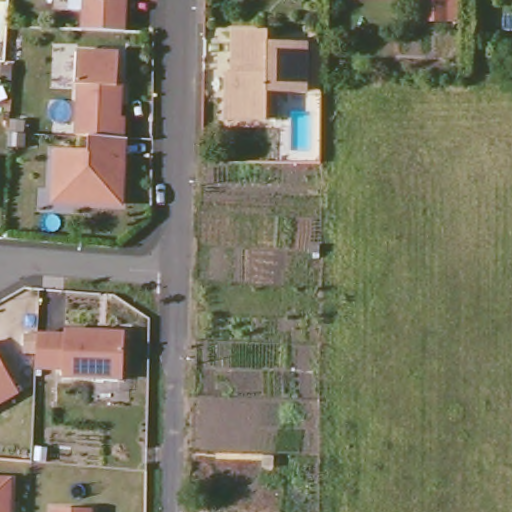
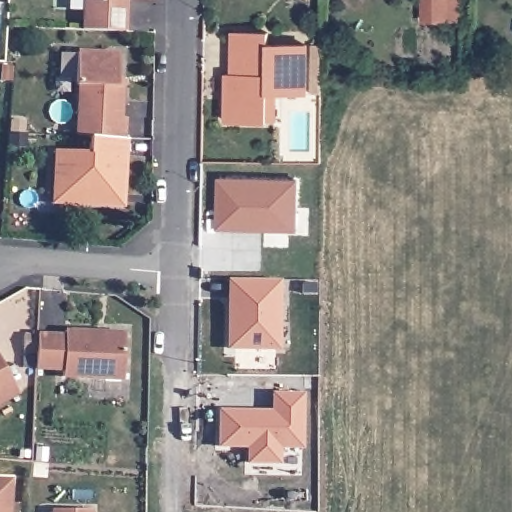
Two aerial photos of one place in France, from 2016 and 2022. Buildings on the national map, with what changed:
unchanged [(121,33),(77,30),(79,0),(122,0),(121,33)]
unchanged [(424,0),(445,0),(446,22),(442,22),(424,22),(424,0)]
unchanged [(219,97),(219,74),(224,74),(225,33),(256,34),(255,46),(296,48),(296,93),(267,92),(266,121),(257,121),(225,120),(219,120),(219,97)]
unchanged [(305,104),(305,52),(311,52),(311,80),(311,104),(305,104)]
unchanged [(117,144),(72,141),(71,141),(74,90),(70,89),(72,55),(93,57),(97,62),(114,63),(112,91),(117,92),(115,123),(119,123),(117,144)]
new [(10,81),(0,81),(0,66),(11,66),(10,81)]
unchanged [(60,194),(63,141),(71,141),(72,141),(117,144),(128,145),(124,210),(84,207),(59,206),(60,194)]
new [(220,179),(297,179),(297,229),(219,228),(220,179)]
new [(229,279),(280,280),(279,350),(232,349),(233,299),(229,299),(229,279)]
new [(302,284),(316,284),(316,294),(302,294),(302,284)]
unchanged [(35,367),(36,351),(37,334),(64,335),(64,330),(96,330),(96,334),(122,334),(117,377),(62,375),(35,374),(35,367)]
unchanged [(0,404),(0,362),(17,393),(0,404)]
new [(220,412),(253,412),(253,415),(272,415),(273,395),(302,395),(302,449),(280,449),(279,465),(248,464),(248,448),(220,448),(220,412)]
unchanged [(7,512),(0,512),(0,481),(9,481),(7,512)]

